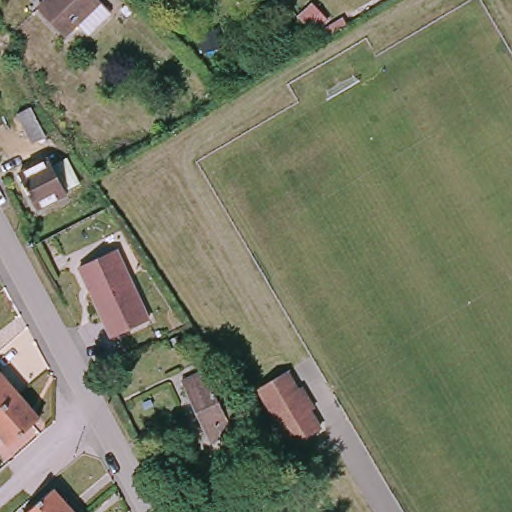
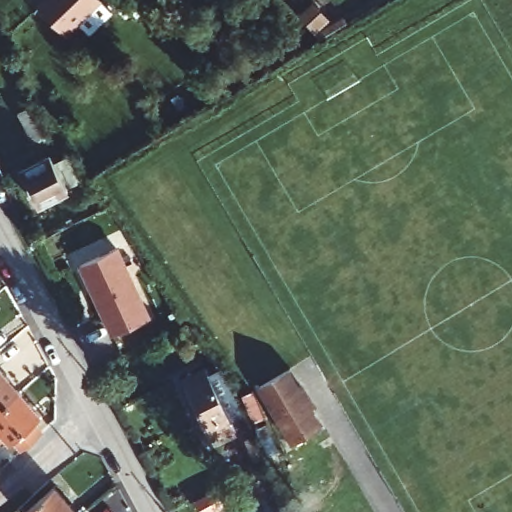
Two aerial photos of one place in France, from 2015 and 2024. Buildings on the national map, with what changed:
unchanged [(101,0),(100,1),(111,12),(87,34),(77,22),(64,36),(38,7),(46,0),(101,0)]
unchanged [(32,143),(17,113),(31,106),(47,136),(32,143)]
unchanged [(45,157),(48,164),(49,165),(63,159),(74,182),(60,189),(62,194),(31,208),(14,173),(45,157)]
unchanged [(119,240),(153,310),(117,327),(83,257),(119,240)]
unchanged [(0,403),(0,367),(18,387),(0,403)]
unchanged [(207,441),(179,380),(201,370),(205,380),(214,375),(235,416),(225,421),(230,430),(207,441)]
unchanged [(284,371),(317,427),(286,445),(253,388),(284,371)]
unchanged [(242,383),(252,407),(275,461),(263,466),(241,412),(242,412),(232,388),(242,383)]
unchanged [(10,438),(6,433),(0,438),(0,403),(18,387),(40,412),(10,438)]
unchanged [(255,462),(251,463),(239,439),(244,437),(255,462)]
unchanged [(54,488),(75,512),(26,512),(54,488)]

